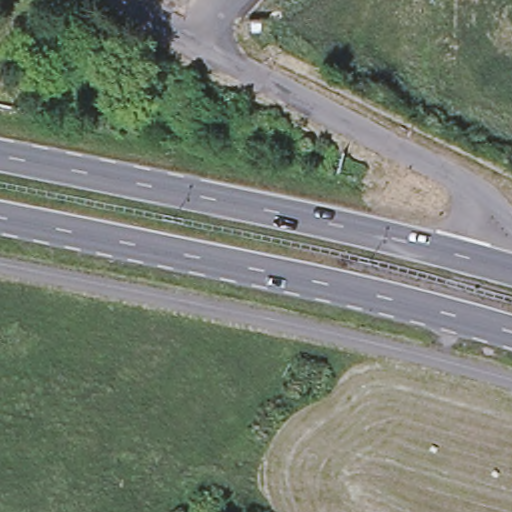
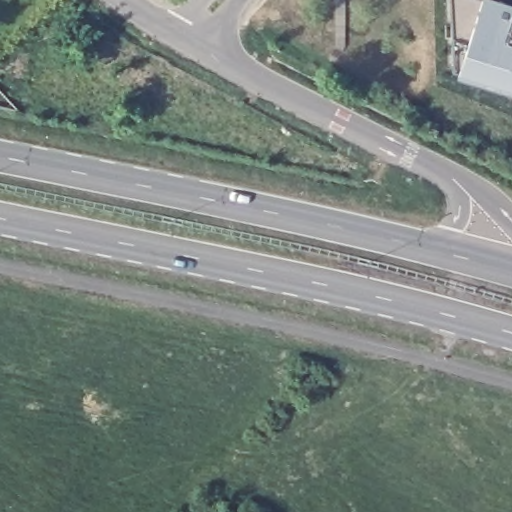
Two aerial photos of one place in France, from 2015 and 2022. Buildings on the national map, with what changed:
new [(452,70),(451,0),(506,0),(512,2),(512,94),(457,76),(458,71),(452,70)]

